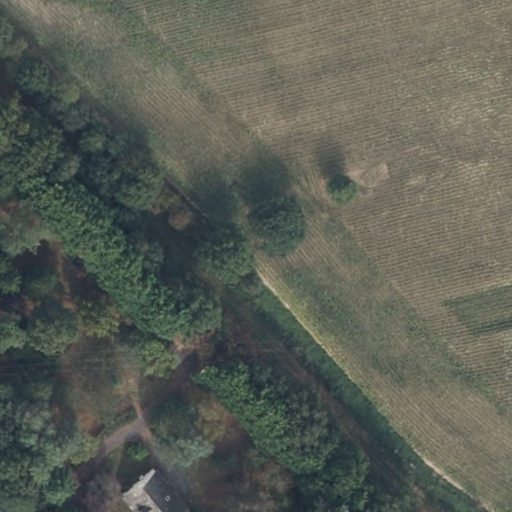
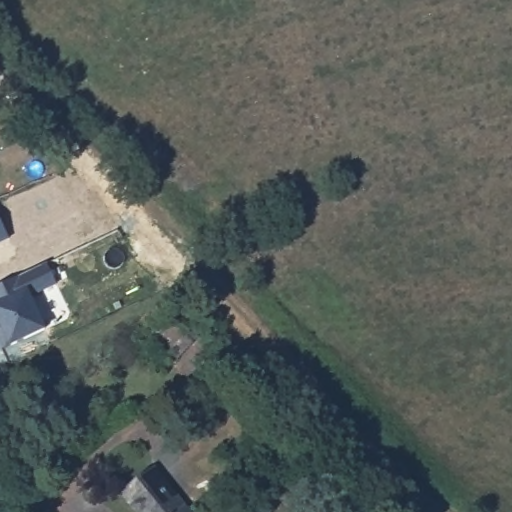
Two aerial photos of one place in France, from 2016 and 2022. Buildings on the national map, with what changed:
new [(0,340),(0,286),(47,264),(58,285),(31,298),(46,329),(9,348),(5,351),(0,340)]
unchanged [(186,342),(167,359),(134,322),(153,305),(186,342)]
unchanged [(185,512),(133,512),(121,495),(156,472),(185,512)]

